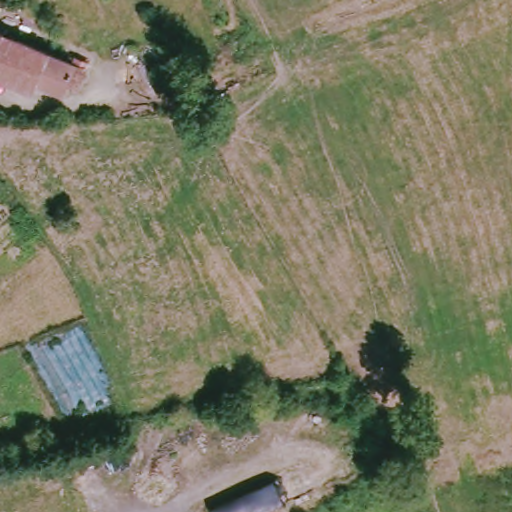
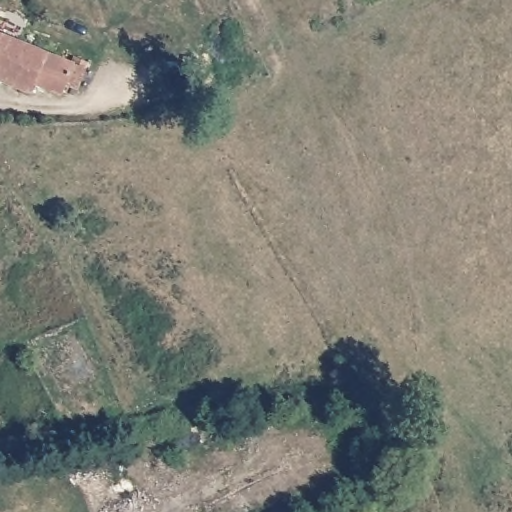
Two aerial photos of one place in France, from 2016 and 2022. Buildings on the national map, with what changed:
unchanged [(86,69),(77,89),(60,82),(56,92),(32,82),(28,92),(0,80),(0,32),(71,62),(75,53),(90,61),(86,69)]

